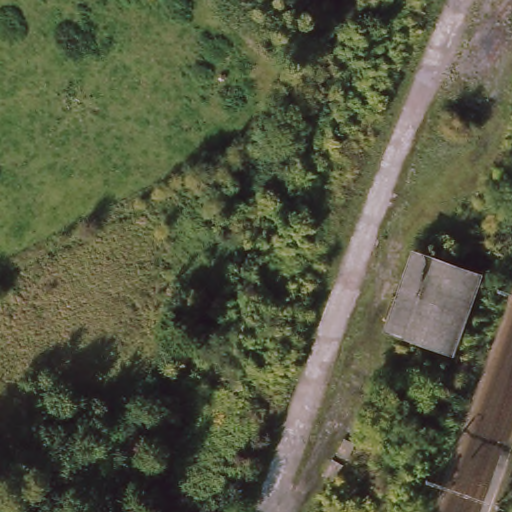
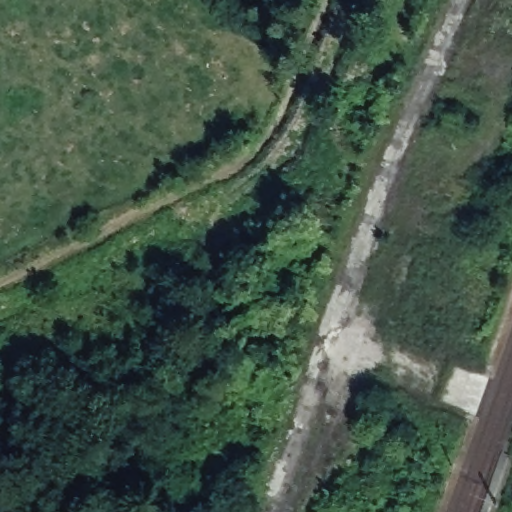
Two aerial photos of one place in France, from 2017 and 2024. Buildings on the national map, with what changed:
demolished [(483,271),(454,356),(380,332),(413,251),(483,271)]

